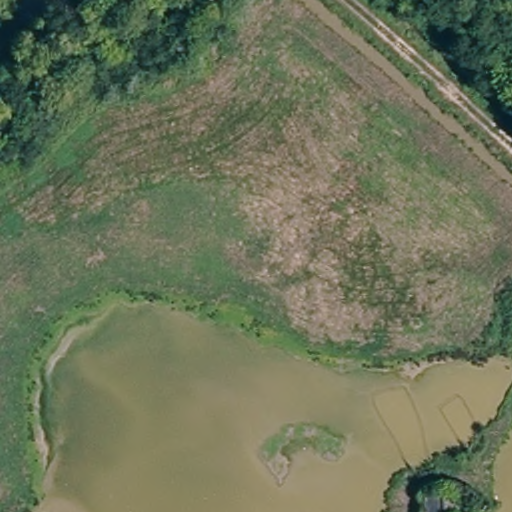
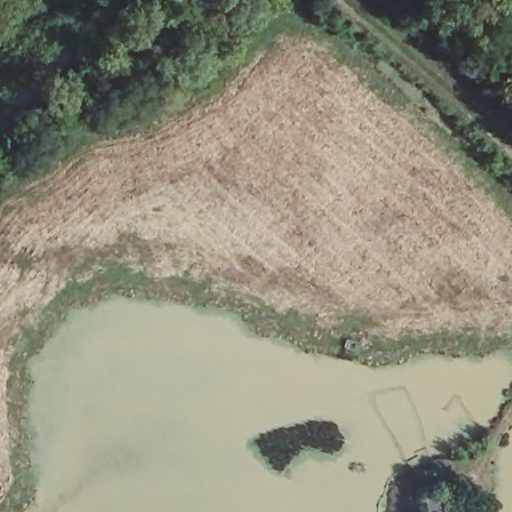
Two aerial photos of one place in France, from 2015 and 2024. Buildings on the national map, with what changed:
unchanged [(441,512),(420,512),(418,505),(437,496),(441,512)]

